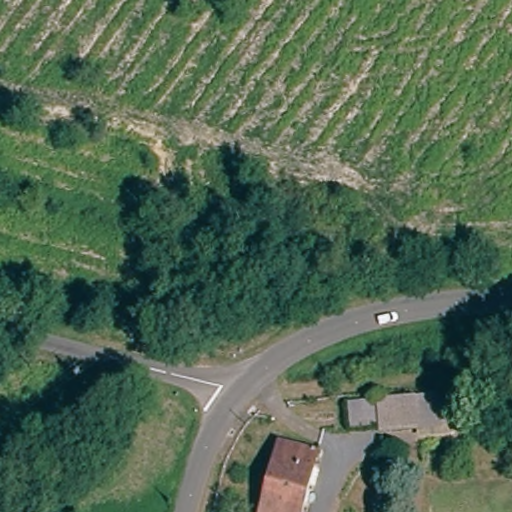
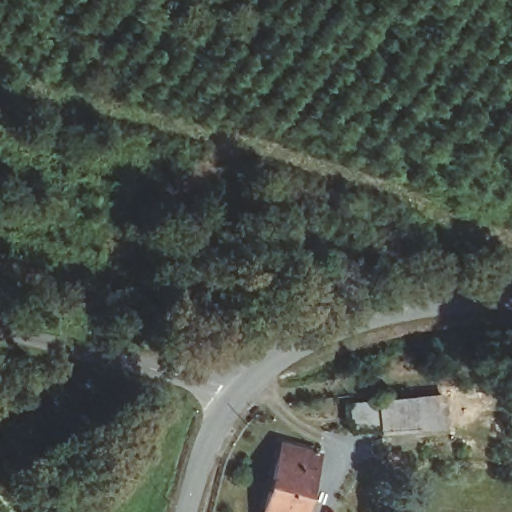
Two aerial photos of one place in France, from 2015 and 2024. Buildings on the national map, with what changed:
unchanged [(447,395),(447,425),(354,428),(352,403),(447,395)]
unchanged [(316,458),(300,512),(261,512),(275,458),(281,460),(283,450),(316,458)]

